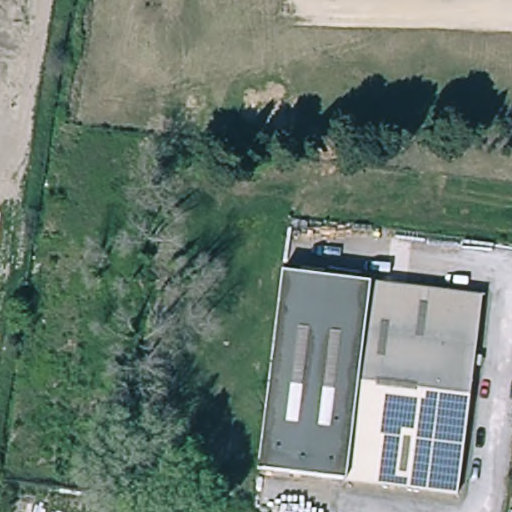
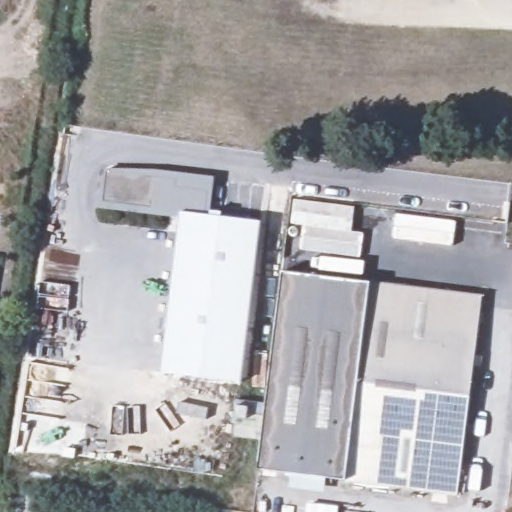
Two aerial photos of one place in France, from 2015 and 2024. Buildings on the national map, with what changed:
new [(180,218),(99,208),(104,170),(118,172),(119,166),(216,178),(211,216),(261,222),(241,382),(161,372),(180,218)]
unchanged [(486,295),(460,488),(256,461),(281,265),(486,295)]

